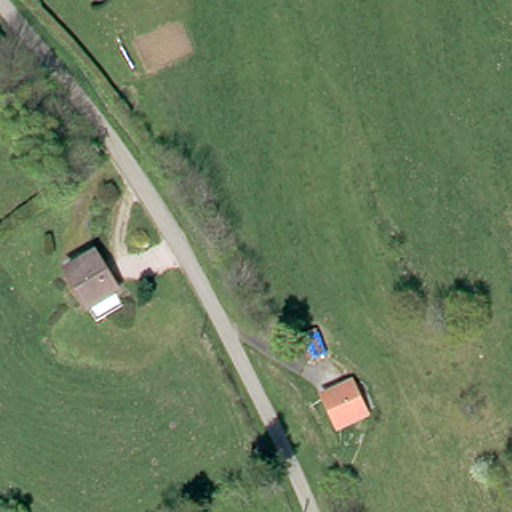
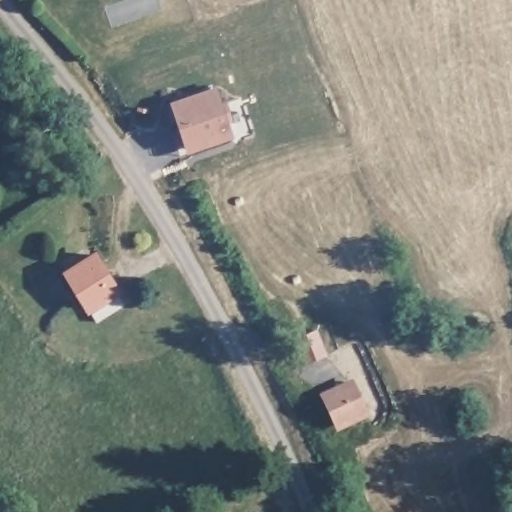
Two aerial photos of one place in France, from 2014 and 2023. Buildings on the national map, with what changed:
new [(170,100),(217,84),(233,136),(187,151),(170,100)]
unchanged [(87,247),(117,297),(94,314),(58,263),(87,247)]
unchanged [(319,397),(345,382),(362,408),(335,425),(319,397)]

